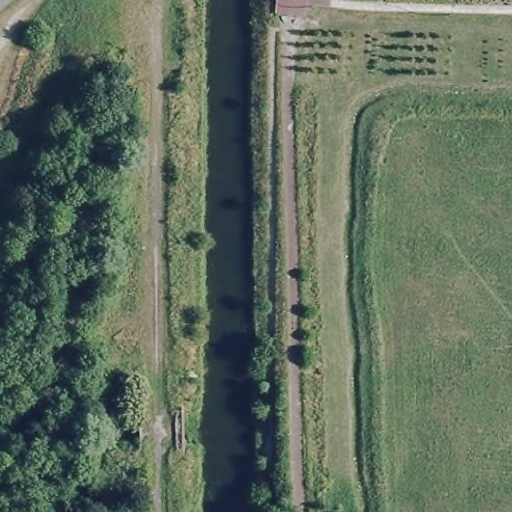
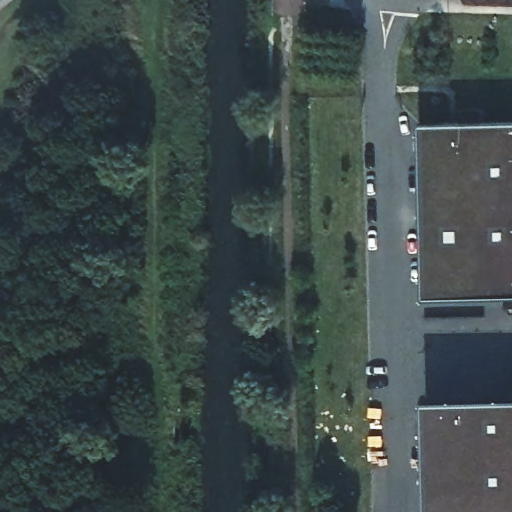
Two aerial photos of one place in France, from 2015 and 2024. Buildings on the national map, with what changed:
new [(436,138),(476,136),(476,124),(498,123),(498,135),(512,135),(512,309),(434,310),(436,138)]
new [(512,512),(442,512),(436,416),(512,414),(512,512)]

